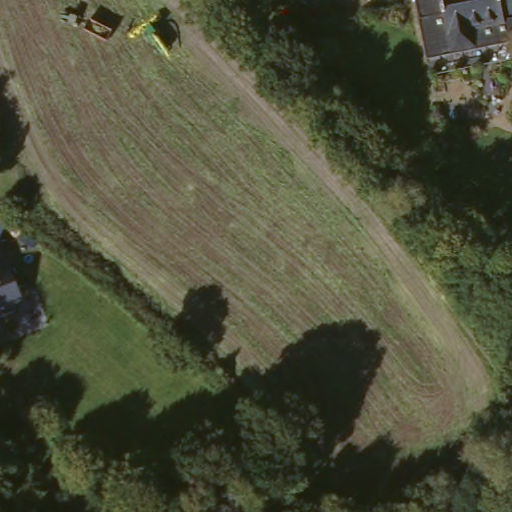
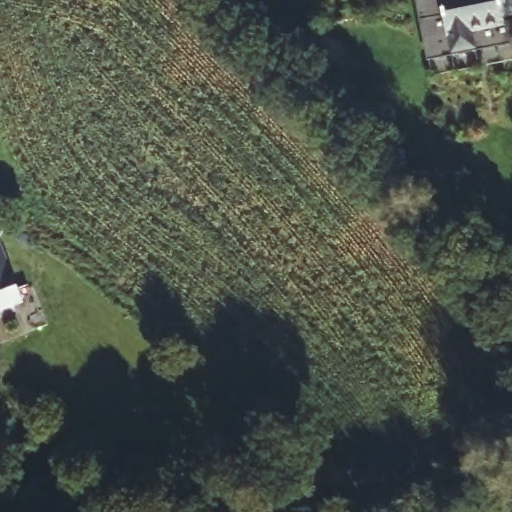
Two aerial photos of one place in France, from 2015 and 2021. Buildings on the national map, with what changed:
unchanged [(421,63),(411,0),(512,0),(512,18),(501,19),(497,27),(507,25),(512,25),(512,48),(511,48),(421,63)]
unchanged [(21,304),(0,311),(0,248),(21,304)]

